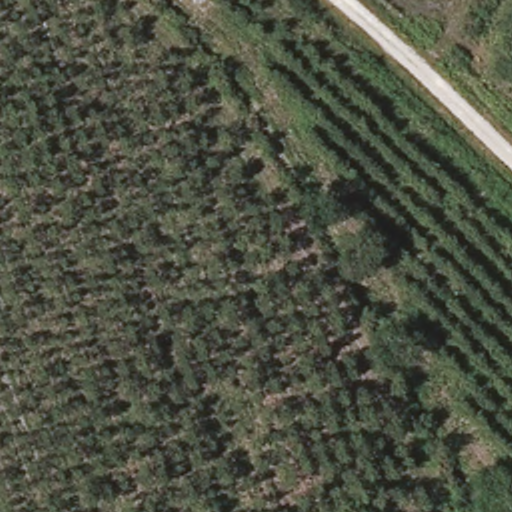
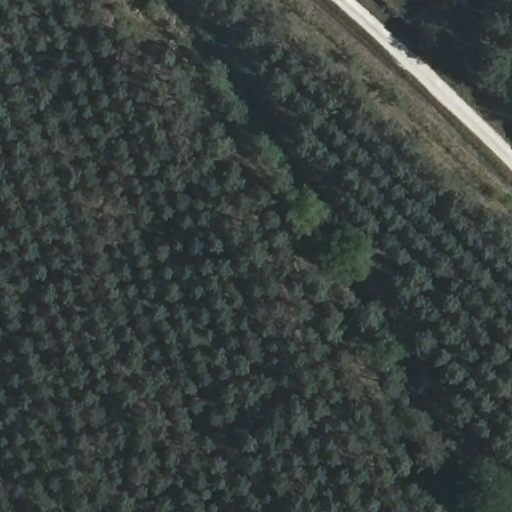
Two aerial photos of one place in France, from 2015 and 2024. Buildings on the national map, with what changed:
[]

